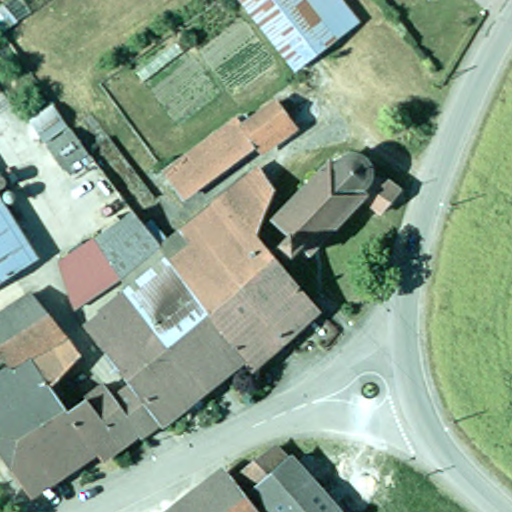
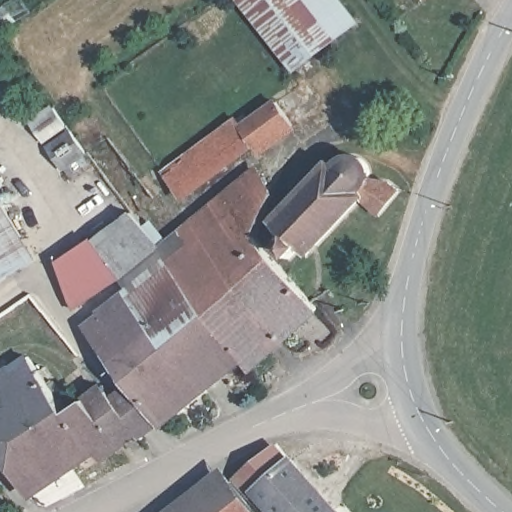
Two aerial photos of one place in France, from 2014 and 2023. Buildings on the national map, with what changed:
unchanged [(240,0),(304,0),(334,38),(295,69),(240,0)]
unchanged [(334,38),(304,0),(338,0),(354,21),(334,38)]
unchanged [(432,0),(429,2),(427,0),(432,0)]
unchanged [(240,124),(247,132),(281,107),(298,131),(262,155),(257,149),(185,202),(168,177),(240,124)]
unchanged [(43,141),(37,132),(31,123),(51,109),(53,108),(59,116),(66,125),(43,141)]
unchanged [(47,147),(70,131),(87,152),(63,170),(47,147)]
unchanged [(334,171),(345,162),(348,161),(352,161),(356,161),(360,162),(363,165),(365,167),(368,171),(369,175),(369,184),(389,187),(399,196),(379,218),(362,202),(307,260),(300,252),(289,263),(276,252),(286,241),(271,227),(329,167),(334,171)]
unchanged [(195,252),(182,235),(256,177),(273,202),(267,207),(257,239),(256,242),(317,314),(248,375),(240,365),(242,363),(170,272),(195,252)]
unchanged [(40,257),(19,272),(0,284),(0,196),(40,257)]
unchanged [(117,284),(101,257),(92,245),(132,217),(157,248),(155,249),(157,252),(117,284)]
unchanged [(72,315),(59,267),(92,245),(101,257),(117,284),(72,315)]
unchanged [(157,252),(170,272),(132,302),(117,284),(157,252)]
unchanged [(170,272),(242,363),(240,365),(204,393),(132,302),(170,272)]
unchanged [(140,444),(135,438),(100,464),(93,455),(30,498),(0,457),(0,380),(11,372),(0,358),(0,319),(30,298),(78,360),(65,375),(48,389),(68,416),(103,391),(104,391),(114,403),(142,442),(141,443),(140,444)]
unchanged [(130,391),(89,337),(132,302),(204,393),(160,428),(130,391)]
unchanged [(114,403),(130,391),(160,428),(142,442),(114,403)]
unchanged [(248,498),(250,497),(233,477),(235,475),(237,477),(272,447),(286,462),(290,459),(337,512),(260,512),(248,498)]
unchanged [(254,512),(170,512),(215,477),(223,471),(224,472),(254,512)]

